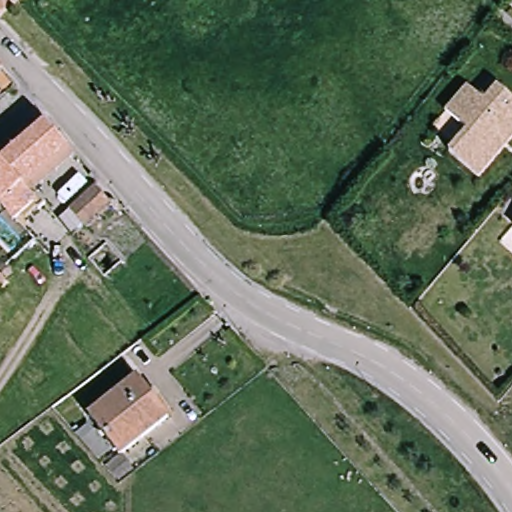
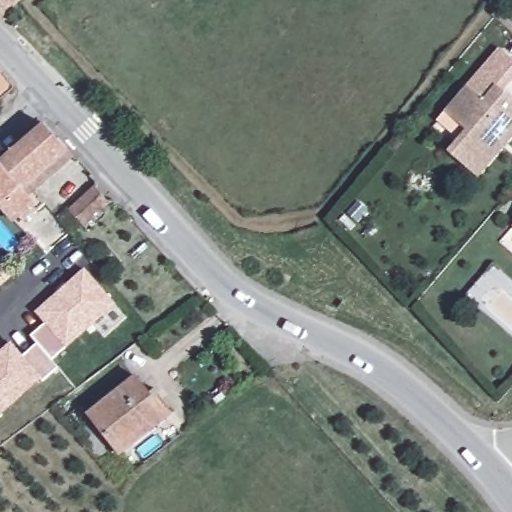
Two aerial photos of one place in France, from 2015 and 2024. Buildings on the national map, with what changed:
unchanged [(2,20),(0,17),(0,0),(28,0),(2,20)]
new [(500,85),(485,104),(467,88),(500,50),(512,60),(512,83),(506,90),(500,85)]
unchanged [(512,96),(512,136),(475,179),(447,154),(471,127),(460,140),(437,121),(450,108),(467,88),(485,104),(500,85),(512,96)]
unchanged [(0,163),(1,161),(6,166),(13,173),(56,135),(73,153),(32,189),(40,196),(18,216),(0,196),(0,163)]
unchanged [(109,195),(84,219),(83,220),(68,202),(95,179),(109,195)]
new [(41,380),(0,415),(0,352),(11,342),(23,355),(36,343),(30,336),(45,324),(35,312),(85,269),(118,305),(68,347),(53,360),(60,368),(43,382),(41,380)]
unchanged [(141,373),(173,415),(130,451),(96,411),(141,373)]
unchanged [(113,448),(103,458),(78,428),(88,418),(113,448)]

